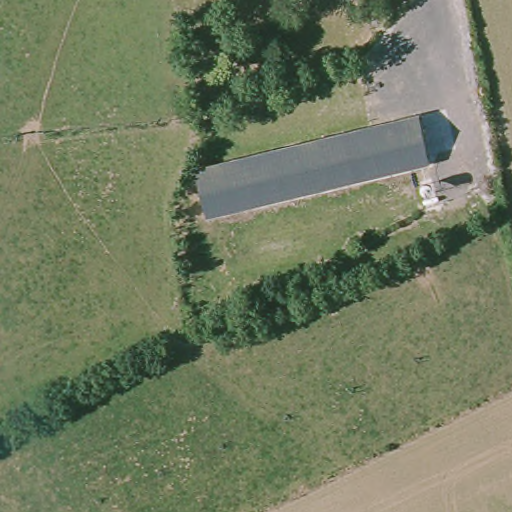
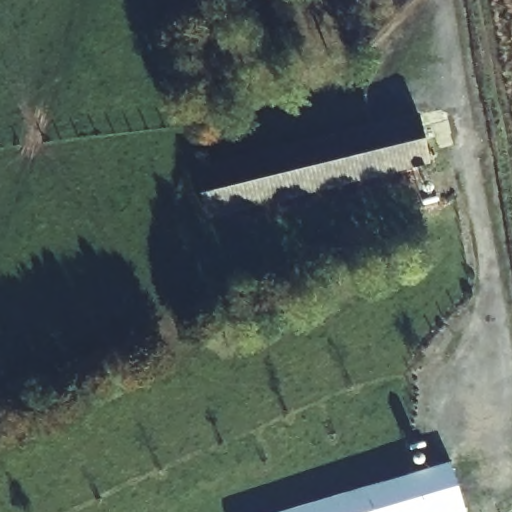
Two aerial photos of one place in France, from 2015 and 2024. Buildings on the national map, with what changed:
unchanged [(431,162),(207,217),(194,167),(420,112),(431,162)]
new [(452,461),(467,512),(277,512),(452,461)]

